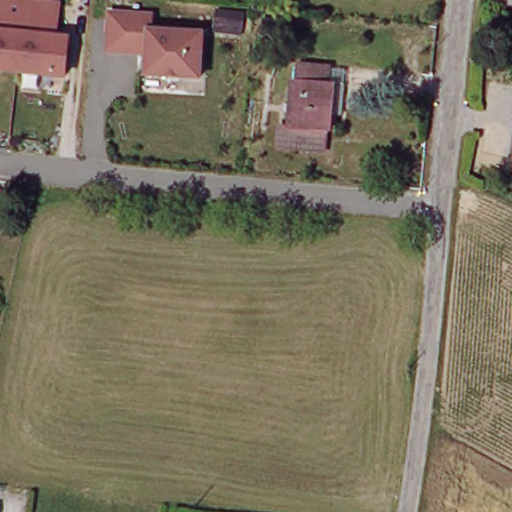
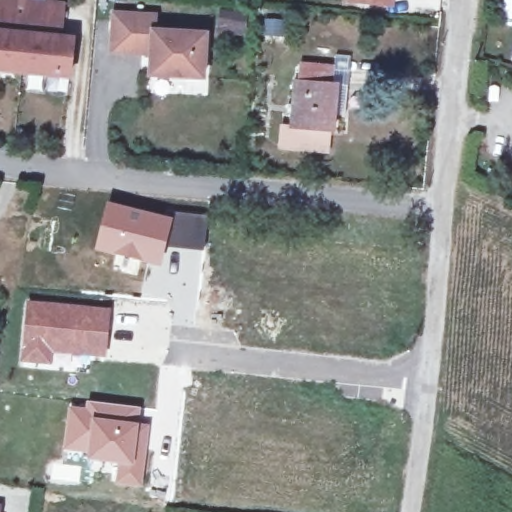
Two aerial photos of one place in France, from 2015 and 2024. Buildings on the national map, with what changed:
unchanged [(66,4),(60,36),(76,38),(71,81),(0,75),(0,0),(28,0),(66,4)]
new [(394,5),(348,1),(348,0),(395,0),(394,5)]
unchanged [(205,75),(143,71),(145,52),(102,51),(105,8),(150,11),(147,25),(206,30),(205,75)]
unchanged [(321,70),(320,86),(326,86),(321,151),(275,146),(278,129),(287,129),(291,85),(298,85),(299,69),(321,70)]
new [(105,201),(174,216),(167,246),(162,267),(93,249),(105,201)]
new [(174,216),(175,211),(210,216),(204,251),(167,246),(174,216)]
new [(25,299),(112,307),(107,358),(55,354),(54,365),(20,362),(25,299)]
new [(68,405),(85,406),(86,400),(142,406),(141,422),(150,423),(142,487),(115,484),(117,464),(87,460),(87,452),(63,450),(68,405)]

